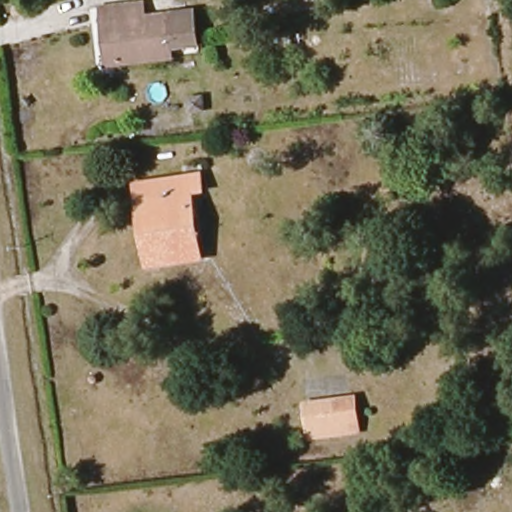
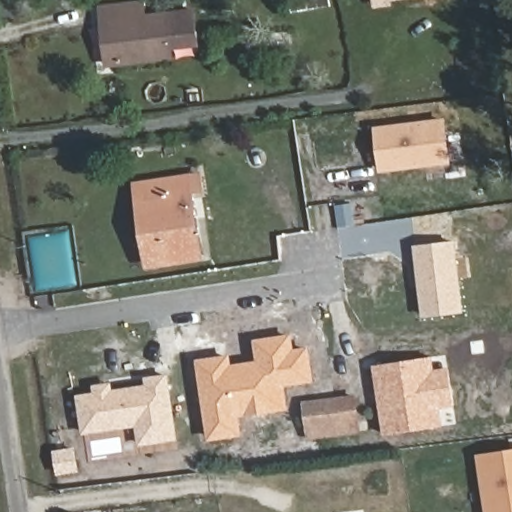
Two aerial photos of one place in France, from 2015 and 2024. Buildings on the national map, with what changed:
unchanged [(313,11),(268,16),(266,0),(311,0),(313,11)]
new [(389,2),(377,3),(377,0),(389,0),(389,2)]
unchanged [(106,28),(104,13),(147,8),(149,23),(168,21),(198,18),(200,48),(174,50),(176,63),(174,64),(119,69),(111,70),(106,28)]
new [(381,173),(375,127),(446,118),(452,164),(381,173)]
unchanged [(143,205),(140,188),(181,182),(192,180),(199,231),(203,254),(192,256),(159,261),(151,262),(148,237),(143,205)]
new [(464,311),(424,316),(415,245),(456,240),(464,311)]
new [(286,387),(289,410),(240,417),(244,437),(209,442),(196,360),(232,355),(233,364),(257,361),(254,339),(293,334),(295,349),(310,347),(315,383),(286,387)]
new [(443,427),(384,436),(374,365),(433,357),(434,369),(449,367),(456,406),(441,409),(443,427)]
new [(78,394),(93,392),(93,385),(113,383),(114,389),(145,385),(145,378),(169,374),(177,440),(138,445),(137,427),(83,434),(78,394)]
unchanged [(356,429),(303,434),(300,407),(353,403),(356,429)]
new [(512,448),(512,512),(486,512),(478,454),(512,448)]

